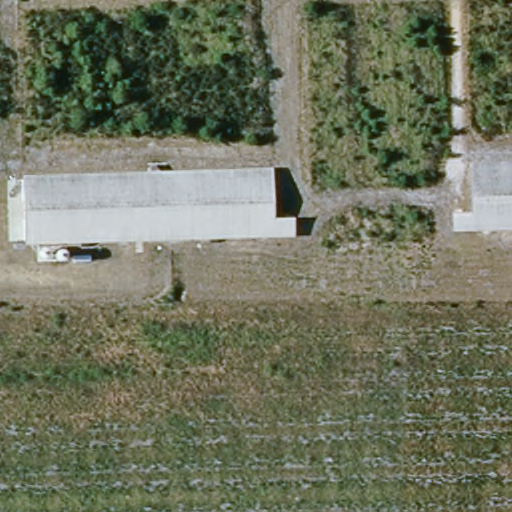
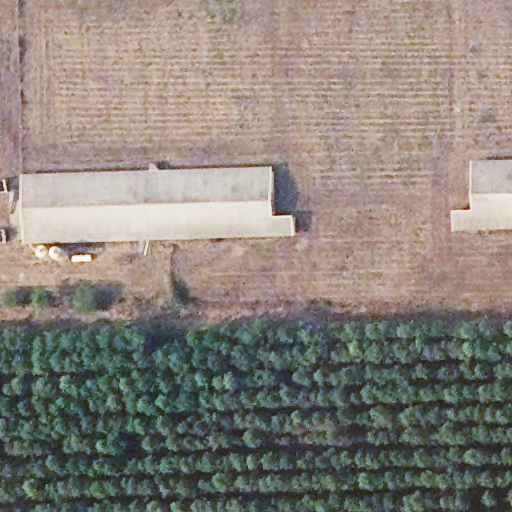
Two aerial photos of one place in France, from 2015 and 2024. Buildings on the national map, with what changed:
unchanged [(299,211),(278,212),(278,226),(23,238),(22,179),(298,166),(299,211)]
unchanged [(472,232),(472,217),(452,219),(451,174),(497,171),(512,171),(512,230),(504,230),(472,232)]

